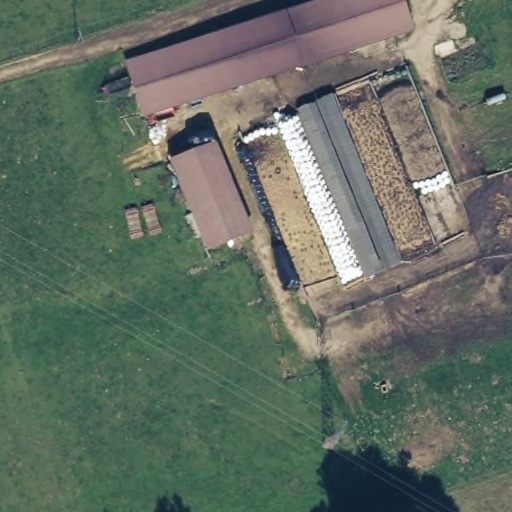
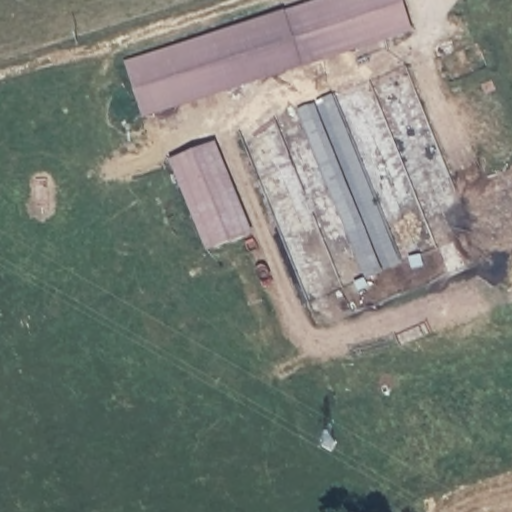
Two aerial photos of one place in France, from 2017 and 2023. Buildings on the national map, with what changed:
unchanged [(402,0),(410,25),(150,115),(130,62),(316,0),(402,0)]
unchanged [(335,94),(395,263),(360,275),(300,105),(335,94)]
unchanged [(217,144),(245,230),(197,249),(168,161),(217,144)]

